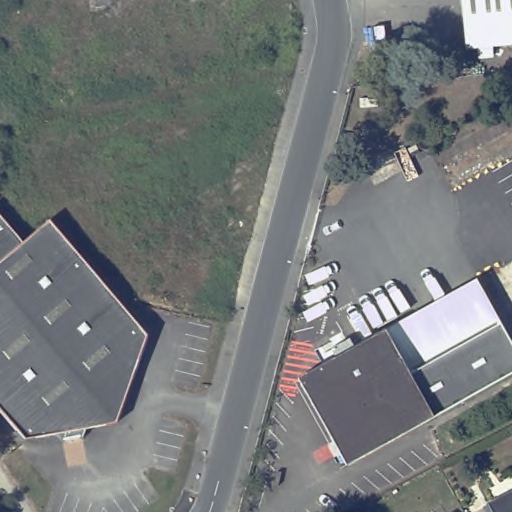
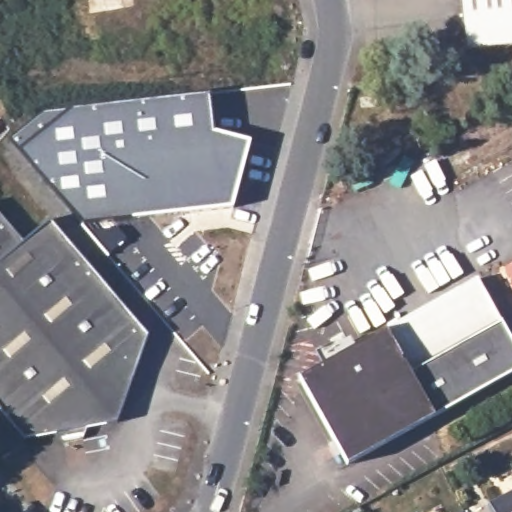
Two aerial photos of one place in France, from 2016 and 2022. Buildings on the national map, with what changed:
unchanged [(465,48),(460,0),(512,0),(512,44),(465,48)]
new [(232,209),(79,225),(10,139),(42,112),(70,109),(210,94),(215,131),(250,141),(232,209)]
unchanged [(30,439),(0,403),(0,208),(28,240),(55,218),(152,334),(121,422),(92,427),(87,438),(67,442),(60,433),(30,439)]
unchanged [(477,280),(500,323),(412,373),(387,329),(477,280)]
unchanged [(412,373),(500,323),(512,344),(512,373),(433,417),(386,330),(387,329),(412,373)]
unchanged [(347,464),(300,377),(386,330),(433,417),(347,464)]
unchanged [(512,490),(512,512),(492,512),(487,504),(512,490)]

